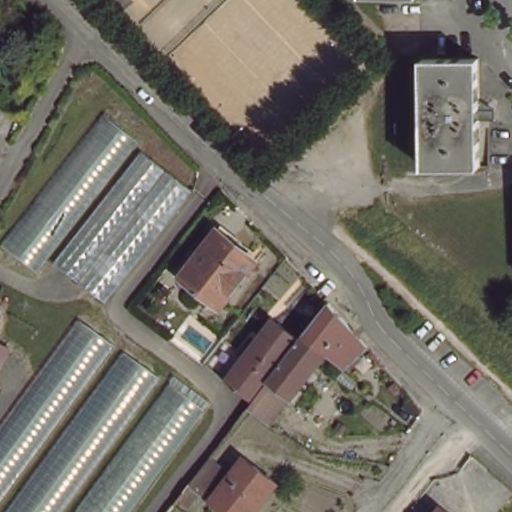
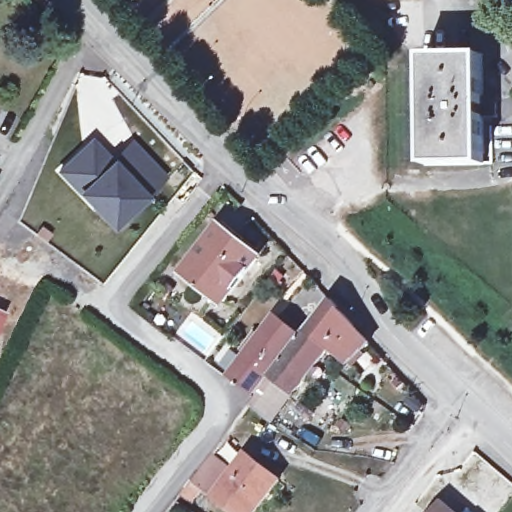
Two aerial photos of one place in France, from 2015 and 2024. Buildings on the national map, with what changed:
unchanged [(478,54),(480,162),(423,163),(422,55),(478,54)]
demolished [(103,107),(192,182),(107,295),(50,255),(36,270),(1,240),(103,107)]
new [(85,148),(104,169),(132,143),(163,176),(122,216),(106,200),(97,210),(60,172),(85,148)]
unchanged [(258,257),(222,301),(184,272),(220,226),(258,257)]
unchanged [(325,342),(306,325),(304,323),(328,295),(365,336),(343,356),(325,342)]
new [(4,311),(0,321),(0,310),(4,311)]
unchanged [(227,370),(273,311),(297,329),(252,389),(227,370)]
demolished [(204,405),(126,512),(0,512),(0,417),(78,313),(204,405)]
unchanged [(260,408),(247,399),(304,323),(306,325),(325,342),(269,416),(260,408)]
unchanged [(200,511),(178,494),(210,452),(231,468),(210,494),(212,497),(200,511)]
unchanged [(231,468),(242,454),(273,479),(248,512),(231,512),(212,497),(210,494),(231,468)]
unchanged [(485,494),(462,473),(480,454),(502,473),(485,494)]
unchanged [(439,512),(445,504),(454,512),(439,512)]

